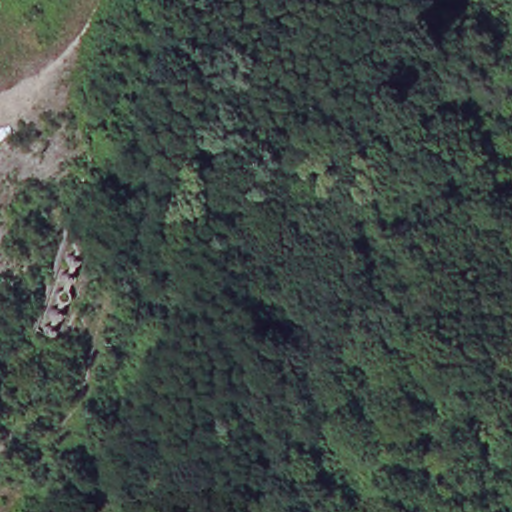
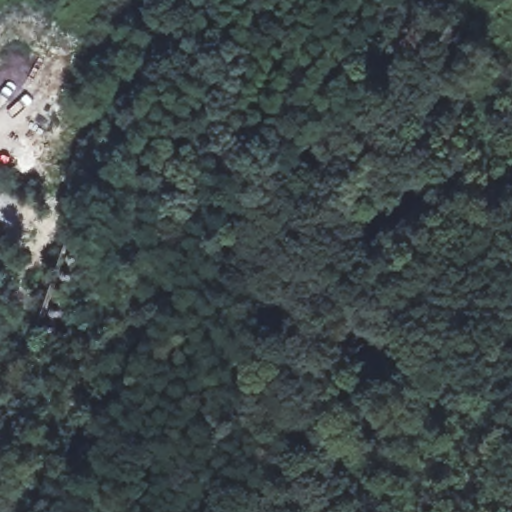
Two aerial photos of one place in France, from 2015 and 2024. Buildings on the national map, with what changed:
unchanged [(65,238),(66,238),(67,238),(69,239),(70,240),(70,241),(71,243),(71,244),(70,245),(70,246),(69,247),(67,248),(66,248),(65,248),(64,248),(62,247),(61,246),(61,245),(60,244),(60,242),(61,241),(61,240),(62,239),(63,238),(65,238)]
unchanged [(58,255),(60,255),(61,255),(62,256),(63,257),(64,258),(64,259),(64,261),(64,262),(63,263),(62,264),(61,265),(60,265),(59,265),(57,265),(56,264),(55,263),(54,262),(54,260),(54,259),(54,258),(55,257),(56,256),(57,255),(58,255)]
unchanged [(56,281),(55,282),(54,283),(53,283),(52,284),(51,284),(50,284),(49,284),(49,283),(48,283),(47,283),(47,282),(47,281),(46,281),(46,280),(46,279),(46,278),(46,277),(47,276),(47,275),(48,274),(49,274),(50,274),(51,274),(52,274),(53,274),(54,274),(54,275),(55,275),(55,276),(56,276),(56,277),(56,278),(56,279),(56,280),(56,281)]
unchanged [(39,295),(40,295),(40,294),(41,294),(42,293),(43,293),(44,293),(45,293),(46,293),(47,293),(47,294),(48,294),(48,295),(49,295),(49,296),(49,297),(49,298),(49,299),(49,300),(48,301),(47,302),(47,303),(46,303),(45,303),(44,303),(43,303),(42,303),(41,302),(40,301),(39,300),(39,299),(39,298),(39,297),(39,296),(39,295)]
unchanged [(42,316),(42,317),(41,317),(41,318),(40,318),(39,318),(38,318),(37,318),(36,318),(35,318),(34,317),(34,316),(33,316),(32,316),(32,315),(32,314),(32,313),(32,312),(32,311),(33,311),(33,310),(34,310),(34,309),(35,309),(36,308),(37,308),(38,308),(39,308),(40,309),(41,309),(41,310),(42,310),(42,311),(42,312),(42,313),(42,314),(42,315),(42,316)]
unchanged [(35,335),(34,336),(33,337),(32,337),(31,337),(30,337),(29,337),(28,337),(27,337),(27,336),(26,335),(26,334),(25,334),(25,333),(25,332),(25,331),(26,330),(26,329),(27,329),(27,328),(28,327),(29,327),(30,327),(31,327),(32,327),(32,328),(33,328),(34,328),(34,329),(35,329),(35,330),(35,331),(36,332),(36,333),(35,334),(35,335)]

